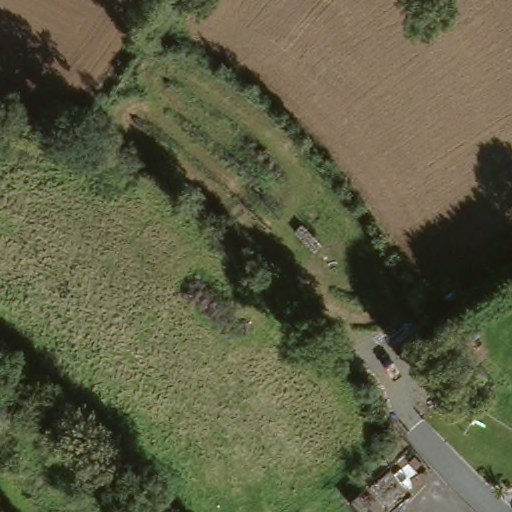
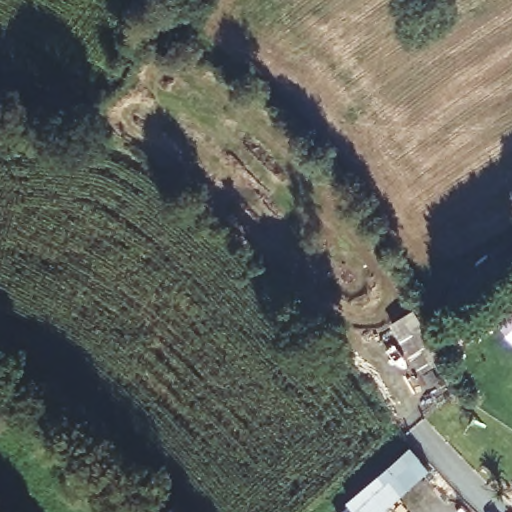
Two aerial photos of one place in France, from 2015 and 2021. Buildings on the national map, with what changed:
new [(384,512),(356,512),(347,502),(411,446),(431,470),(384,512)]

